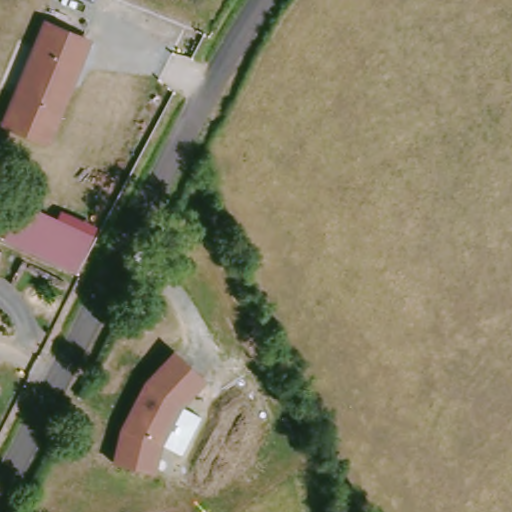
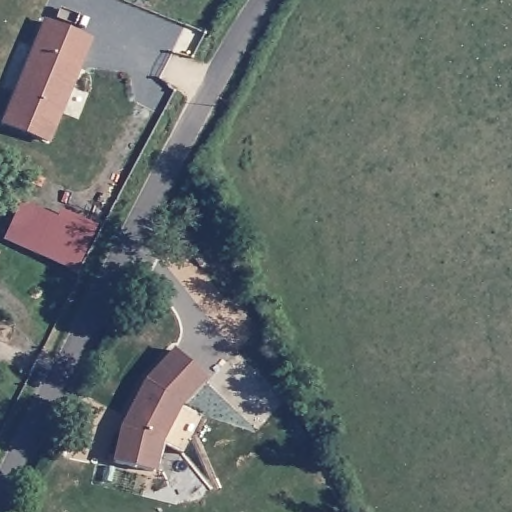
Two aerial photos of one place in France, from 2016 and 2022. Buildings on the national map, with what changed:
unchanged [(45,21),(89,39),(74,77),(71,76),(69,83),(71,84),(49,141),(5,124),(45,21)]
unchanged [(0,239),(20,204),(55,217),(61,210),(95,225),(76,275),(0,239)]
unchanged [(178,407),(159,445),(152,473),(113,465),(121,431),(144,384),(173,352),(202,380),(178,407)]

